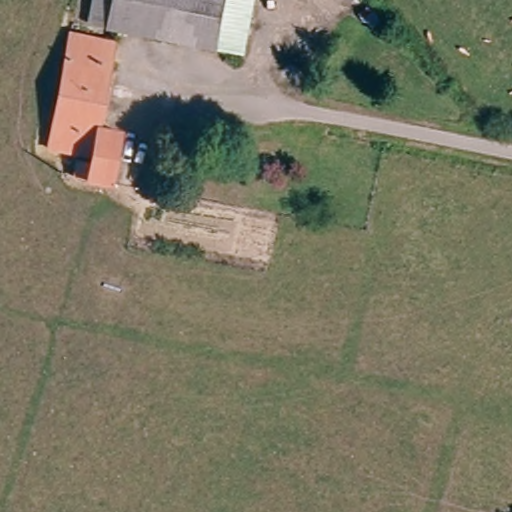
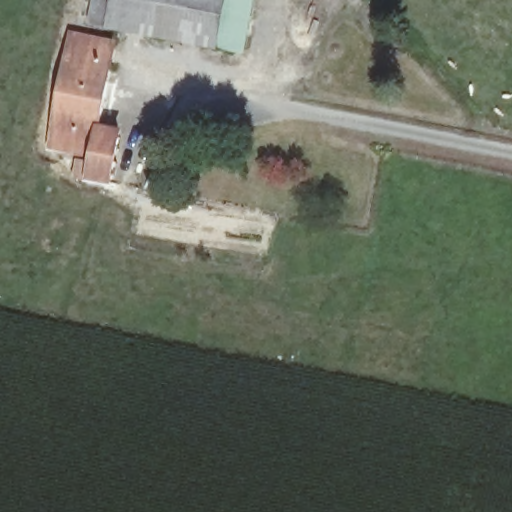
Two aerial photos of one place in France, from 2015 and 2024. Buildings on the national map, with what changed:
unchanged [(115,30),(91,25),(95,0),(258,0),(250,54),(227,50),(115,30)]
unchanged [(114,44),(99,129),(123,134),(113,185),(113,187),(79,180),(81,164),(91,165),(93,157),(52,149),(73,36),(114,44)]

